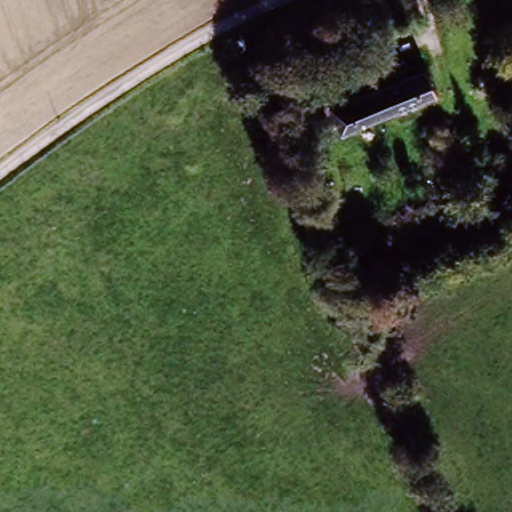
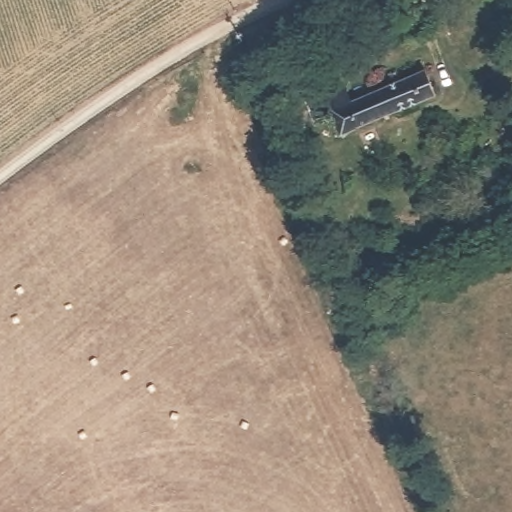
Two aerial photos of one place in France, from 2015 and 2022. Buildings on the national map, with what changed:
unchanged [(344,135),(329,101),(346,94),(350,105),(427,73),(436,96),(344,135)]

